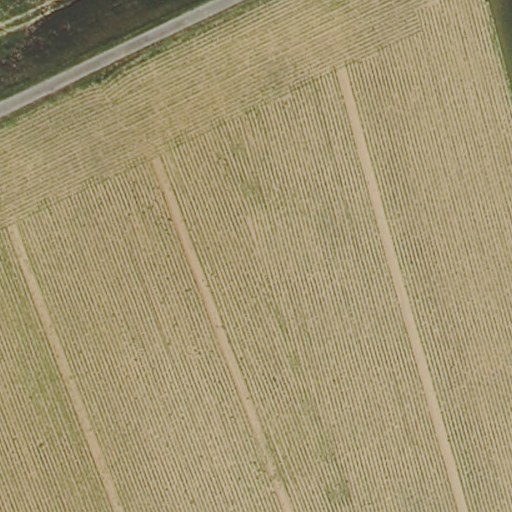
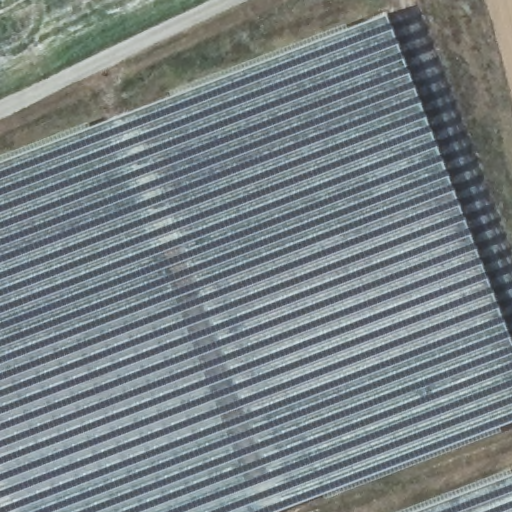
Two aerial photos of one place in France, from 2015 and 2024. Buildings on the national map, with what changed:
new [(512,346),(512,424),(281,512),(0,512),(0,163),(386,15),(512,346)]
new [(411,512),(512,473),(512,512),(411,512)]

